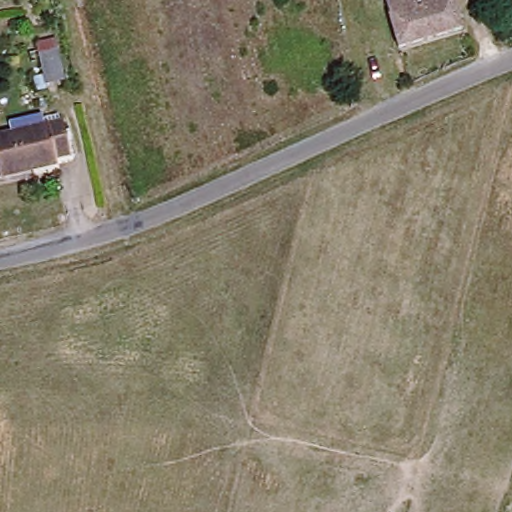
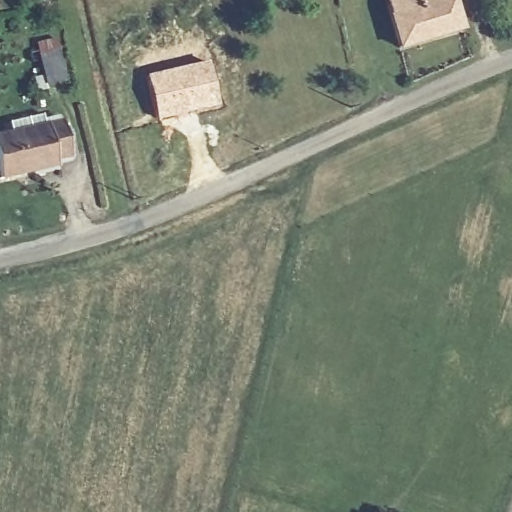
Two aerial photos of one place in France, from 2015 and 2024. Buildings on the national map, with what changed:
unchanged [(459,26),(399,40),(389,0),(452,0),(459,26)]
unchanged [(47,82),(48,93),(35,95),(31,76),(43,74),(37,53),(58,49),(64,77),(47,82)]
new [(209,59),(218,105),(155,119),(145,74),(209,59)]
unchanged [(54,163),(1,175),(0,173),(0,135),(58,122),(64,150),(51,153),(54,163)]

